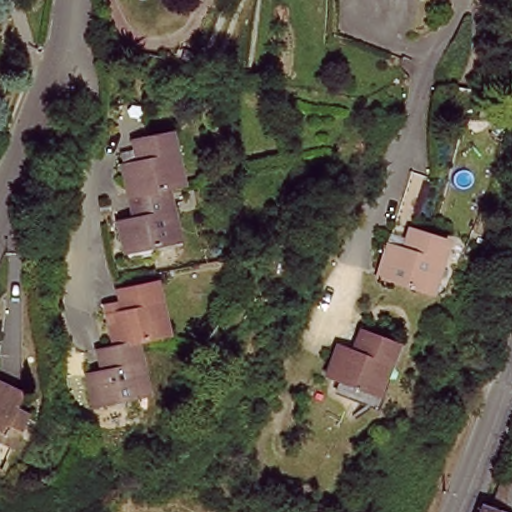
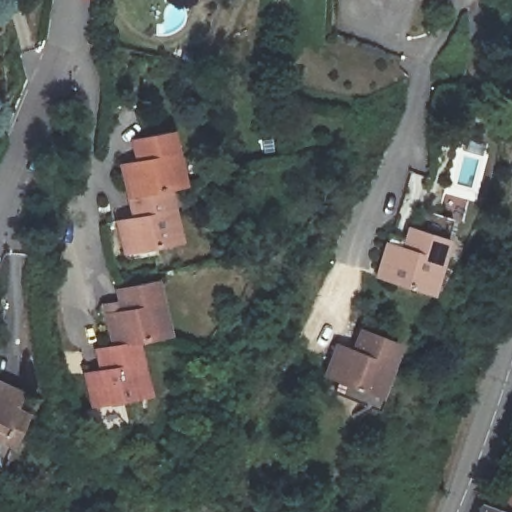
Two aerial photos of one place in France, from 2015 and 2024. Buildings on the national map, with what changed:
unchanged [(396,0),(411,0),(410,2),(396,0)]
unchanged [(457,137),(460,117),(479,119),(477,137),(457,137)]
unchanged [(117,168),(132,165),(127,145),(169,136),(180,188),(163,191),(123,200),(117,168)]
unchanged [(163,191),(176,245),(119,257),(112,226),(128,222),(123,200),(163,191)]
unchanged [(385,255),(400,257),(404,234),(442,240),(432,296),(381,288),(385,255)]
unchanged [(110,350),(105,319),(120,316),(116,296),(153,289),(163,340),(135,346),(110,350)]
unchanged [(338,343),(352,348),(362,326),(398,341),(377,392),(325,373),(338,343)]
unchanged [(135,346),(145,400),(95,410),(89,378),(100,376),(95,353),(110,350),(135,346)]
unchanged [(0,390),(19,398),(12,414),(24,418),(15,440),(10,450),(0,445),(0,390)]
unchanged [(507,485),(512,486),(512,512),(487,512),(497,483),(507,485)]
unchanged [(485,512),(476,512),(477,509),(485,512)]

